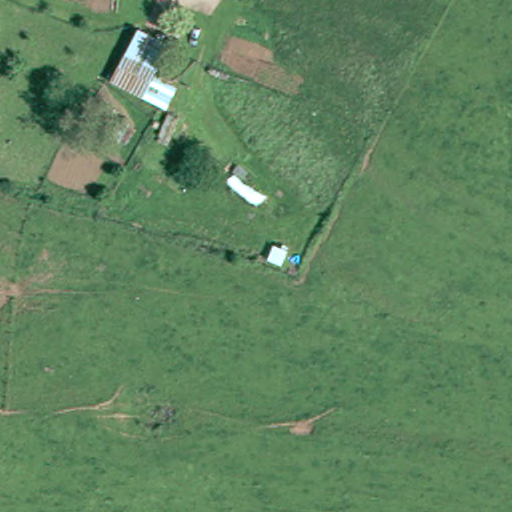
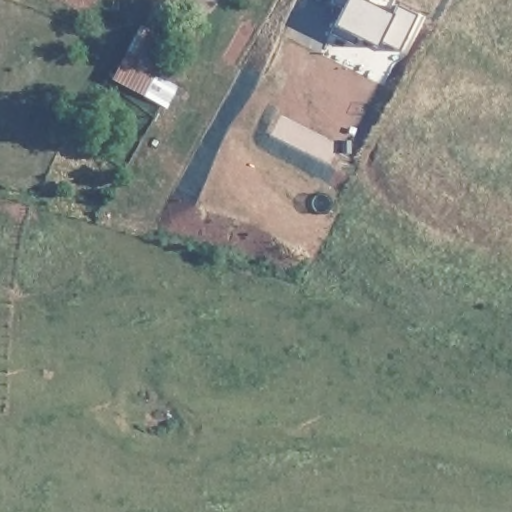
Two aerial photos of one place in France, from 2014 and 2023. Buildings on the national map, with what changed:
new [(341,0),(387,0),(382,13),(397,20),(402,11),(423,20),(407,57),(387,49),(385,54),(363,45),(360,52),(337,41),(347,16),(336,11),(341,0)]
unchanged [(119,86),(137,31),(179,42),(184,44),(171,82),(182,85),(175,104),(150,96),(119,86)]

